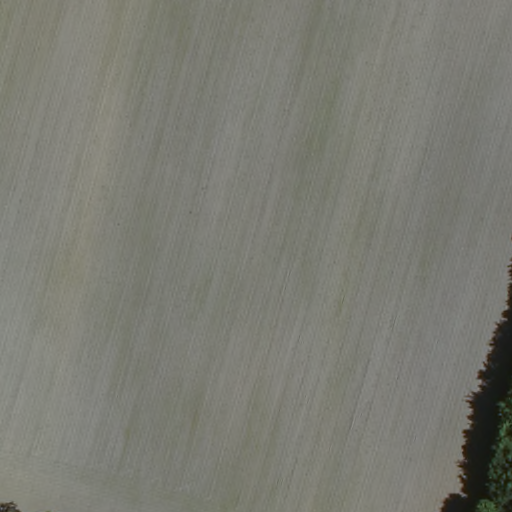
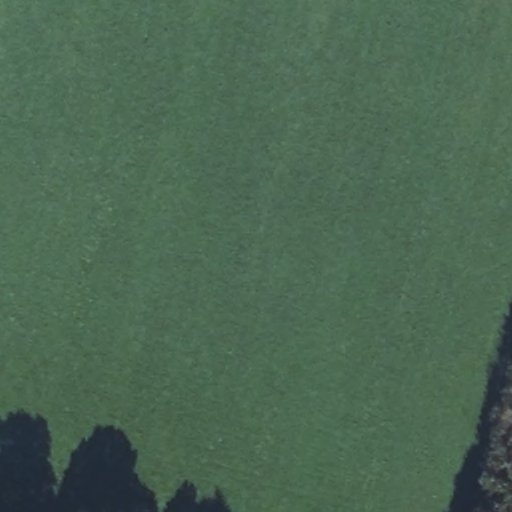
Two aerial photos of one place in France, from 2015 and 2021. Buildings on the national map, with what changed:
[]

